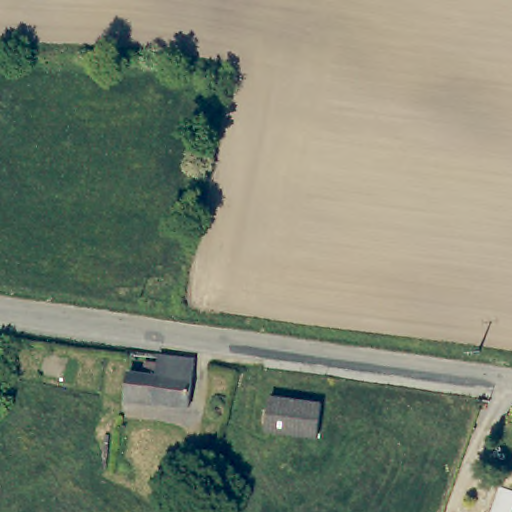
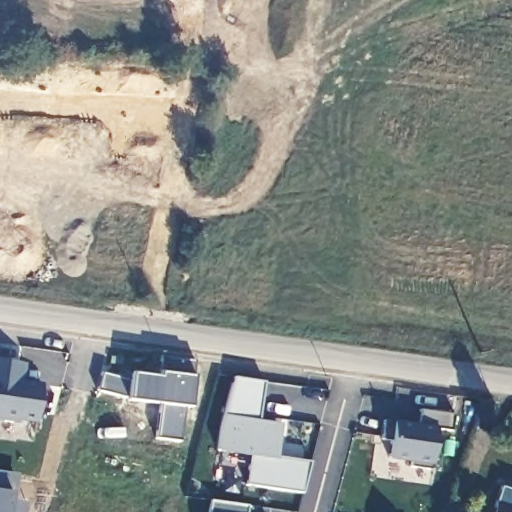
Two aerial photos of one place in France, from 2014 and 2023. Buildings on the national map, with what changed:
unchanged [(132,373),(146,375),(149,362),(159,365),(161,356),(198,362),(190,410),(127,398),(132,373)]
new [(24,362),(21,380),(42,385),(36,423),(0,418),(0,360),(24,362)]
new [(252,457),(216,452),(223,415),(234,377),(263,382),(258,420),(281,423),(276,456),(308,461),(301,492),(268,499),(246,484),(252,457)]
new [(451,430),(436,428),(431,469),(411,466),(411,462),(385,458),(389,440),(380,440),(382,421),(392,422),(393,420),(418,423),(420,410),(453,414),(451,430)]
new [(246,512),(208,512),(209,500),(247,505),(246,512)]

